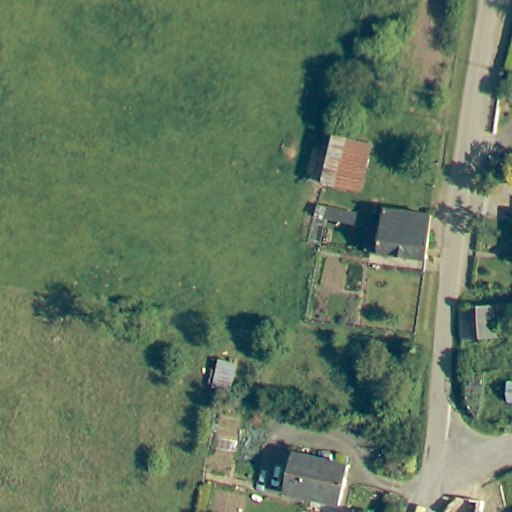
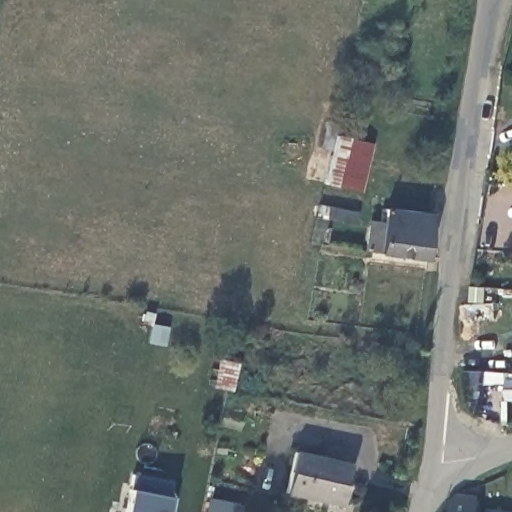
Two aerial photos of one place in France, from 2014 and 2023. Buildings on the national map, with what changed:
unchanged [(336,133),(368,140),(361,187),(327,182),(336,133)]
unchanged [(328,205),(357,209),(357,216),(350,215),(349,221),(327,218),(328,205)]
unchanged [(368,224),(383,226),(386,208),(431,213),(426,258),(366,250),(368,224)]
unchanged [(462,309),(494,308),(494,325),(494,340),(470,340),(459,340),(457,309),(462,309)]
new [(229,390),(224,389),(212,387),(217,361),(229,363),(234,364),(229,390)]
unchanged [(506,372),(512,373),(512,400),(502,399),(506,372)]
unchanged [(292,449),(347,462),(338,502),(283,489),(292,449)]
new [(167,512),(126,512),(130,488),(132,473),(173,481),(170,497),(167,512)]
unchanged [(448,503),(453,498),(457,496),(482,499),(480,512),(445,512),(445,509),(448,503)]

